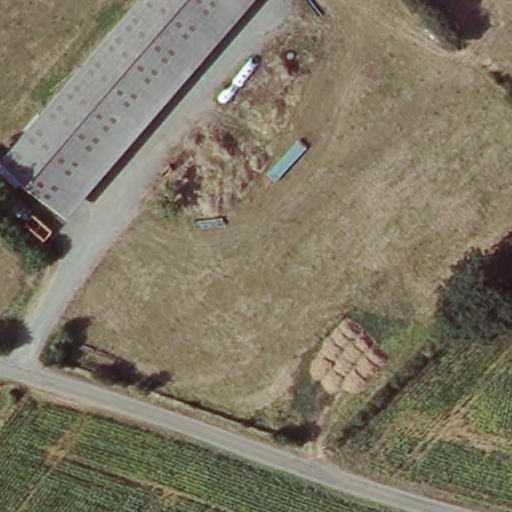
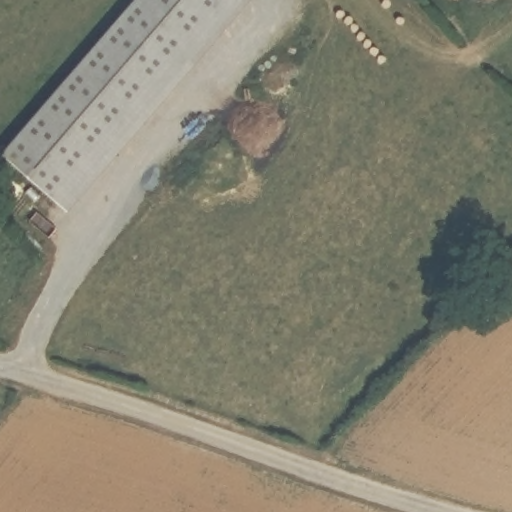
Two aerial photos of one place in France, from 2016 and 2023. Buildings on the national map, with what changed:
unchanged [(65,217),(0,162),(0,155),(136,0),(253,0),(65,217)]

